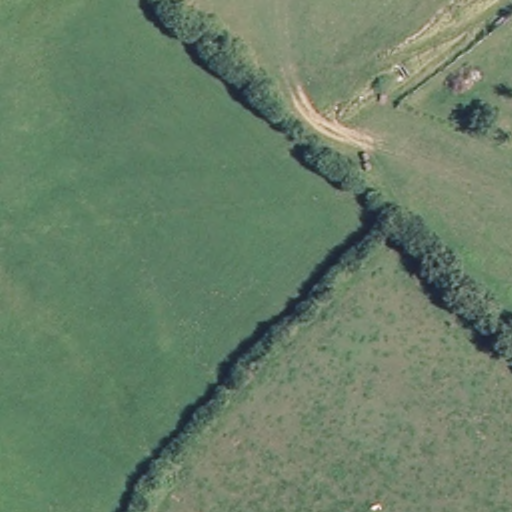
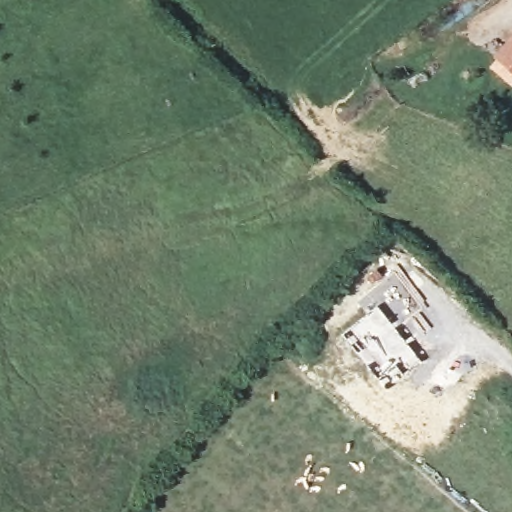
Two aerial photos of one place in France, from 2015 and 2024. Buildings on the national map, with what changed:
new [(512,36),(512,75),(493,59),(512,36)]

